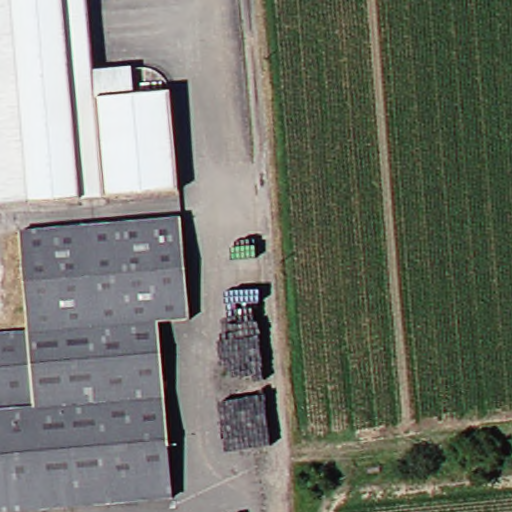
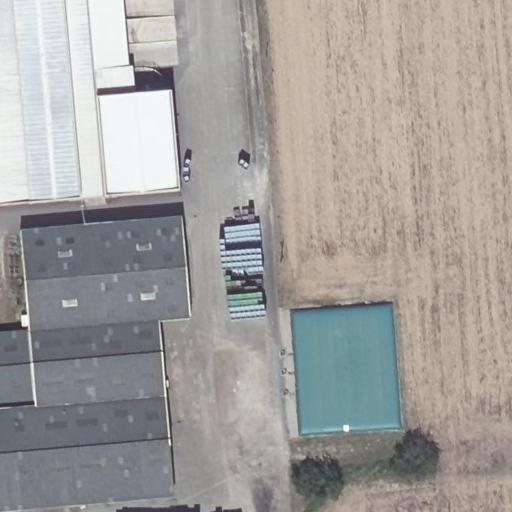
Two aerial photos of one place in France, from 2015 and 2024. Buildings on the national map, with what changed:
unchanged [(0,208),(0,0),(1,0),(19,207),(0,208)]
unchanged [(82,0),(88,73),(126,70),(128,97),(163,94),(171,193),(19,207),(1,0),(82,0)]
new [(82,0),(124,0),(126,70),(88,73),(82,0)]
unchanged [(20,337),(10,234),(171,220),(180,322),(150,325),(20,337)]
unchanged [(18,512),(0,512),(0,339),(20,337),(150,325),(166,499),(18,512)]

